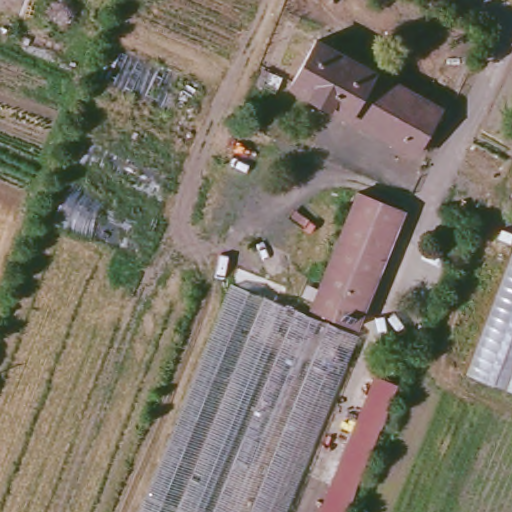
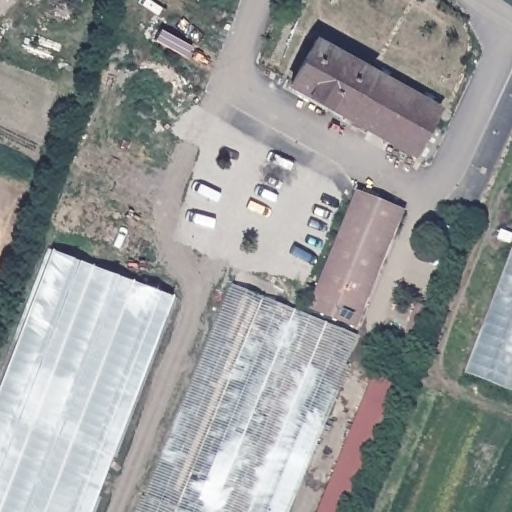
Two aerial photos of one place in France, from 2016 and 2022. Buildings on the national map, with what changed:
unchanged [(294,89),(318,42),(443,110),(420,156),(294,89)]
unchanged [(401,213),(355,329),(309,311),(355,194),(401,213)]
unchanged [(462,374),(512,244),(512,394),(462,374)]
new [(175,295),(90,512),(0,512),(0,382),(52,248),(175,295)]
unchanged [(137,512),(230,286),(356,339),(285,512),(137,512)]
unchanged [(395,388),(343,512),(318,512),(372,379),(395,388)]

